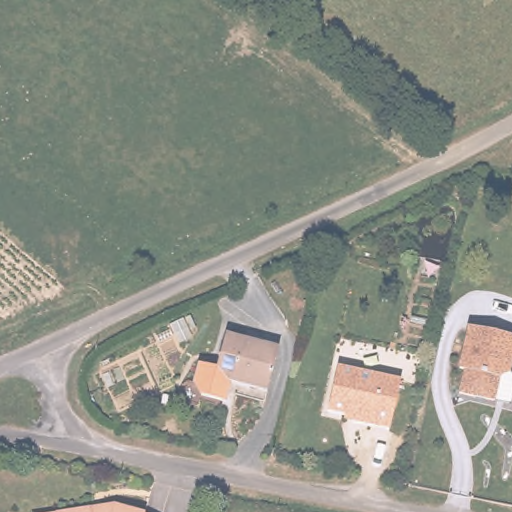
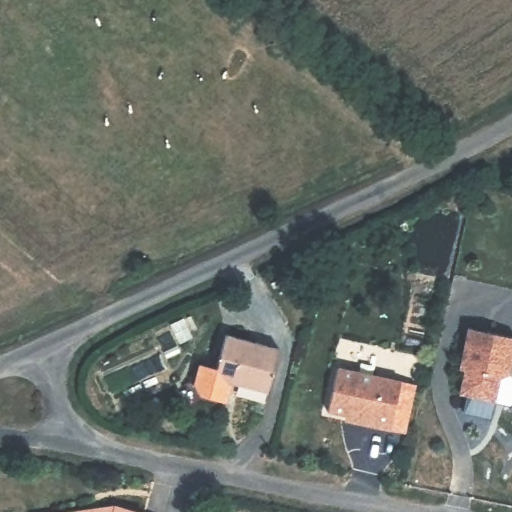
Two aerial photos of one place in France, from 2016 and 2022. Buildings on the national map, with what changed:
unchanged [(455,401),(459,377),(453,376),(461,331),(511,342),(506,375),(492,386),(488,407),(455,401)]
unchanged [(278,350),(264,391),(213,374),(226,332),(278,350)]
unchanged [(506,375),(511,342),(512,342),(512,387),(507,390),(505,410),(488,407),(492,386),(506,375)]
unchanged [(402,391),(390,441),(353,433),(355,427),(329,423),(337,378),(402,391)]
unchanged [(119,500),(142,506),(162,512),(46,512),(119,500)]

